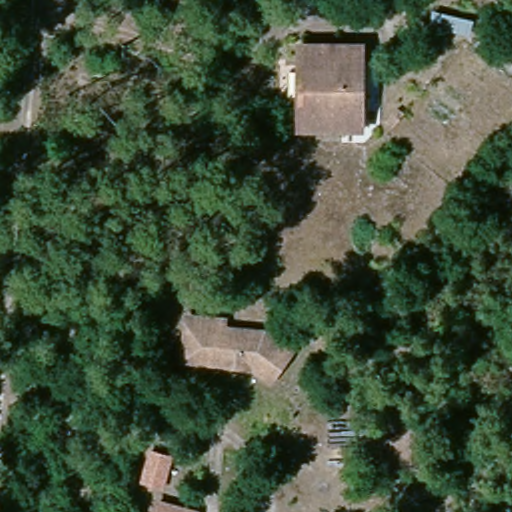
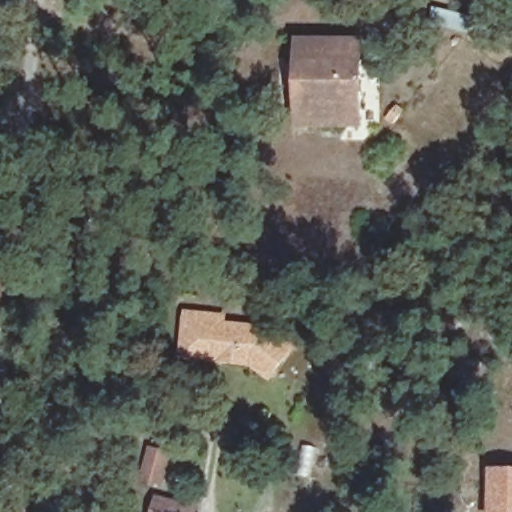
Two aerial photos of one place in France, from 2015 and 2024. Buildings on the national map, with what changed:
unchanged [(363,46),(358,127),(296,124),(300,101),(302,64),(303,42),(363,46)]
unchanged [(229,315),(228,323),(268,325),(296,347),(273,375),(246,351),(222,350),(222,359),(204,357),(190,356),(192,326),(193,311),(229,315)]
unchanged [(139,482),(149,448),(174,455),(164,488),(139,482)]
new [(512,468),(512,512),(490,512),(490,467),(512,468)]
unchanged [(200,508),(199,512),(152,512),(155,497),(200,508)]
demolished [(141,501),(140,512),(123,512),(125,499),(141,501)]

